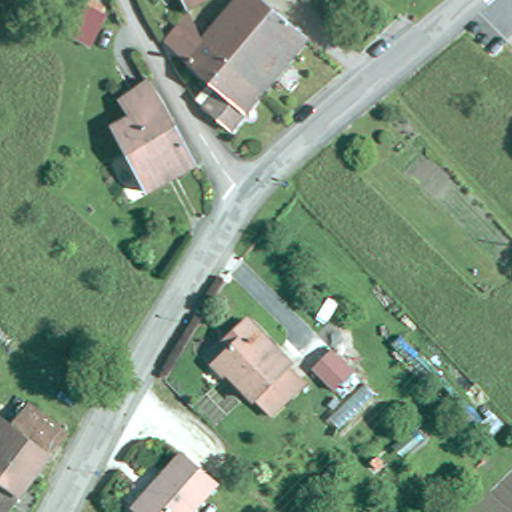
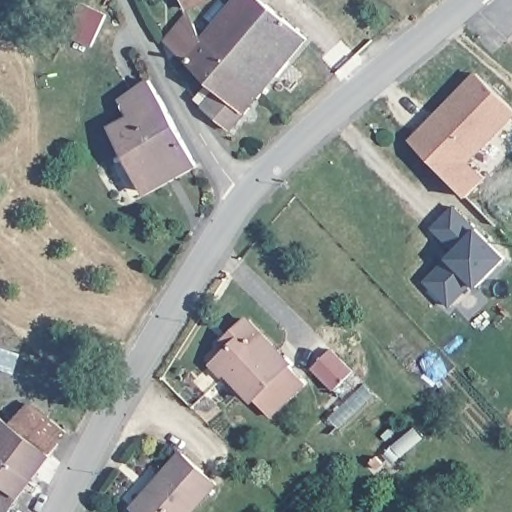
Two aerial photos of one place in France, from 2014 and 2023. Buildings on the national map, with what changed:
unchanged [(192,9),(188,0),(209,0),(192,9)]
unchanged [(241,0),(266,0),(312,38),(266,92),(206,41),(241,0)]
unchanged [(215,83),(190,59),(179,50),(180,48),(171,41),(194,14),(199,24),(206,41),(266,92),(267,93),(236,130),(208,107),(201,101),(215,83)]
new [(409,140),(476,74),(512,107),(512,150),(467,196),(409,140)]
unchanged [(145,192),(112,127),(131,117),(121,101),(149,81),(163,102),(196,164),(145,192)]
new [(476,227),(508,257),(477,289),(471,284),(450,308),(422,282),(445,257),(452,249),(429,227),(453,204),(476,227)]
unchanged [(216,360),(229,347),(222,342),(232,332),(246,319),(277,351),(276,352),(305,382),(270,416),(216,360)]
unchanged [(312,368),(331,349),(353,371),(335,390),(312,368)]
unchanged [(27,394),(65,422),(51,444),(11,415),(27,394)]
unchanged [(0,407),(11,415),(51,444),(4,505),(0,502),(0,407)]
unchanged [(153,490),(152,487),(182,453),(216,483),(190,512),(138,512),(136,510),(153,490)]

